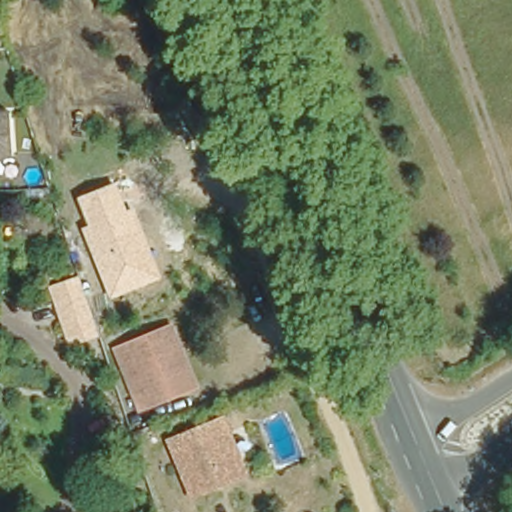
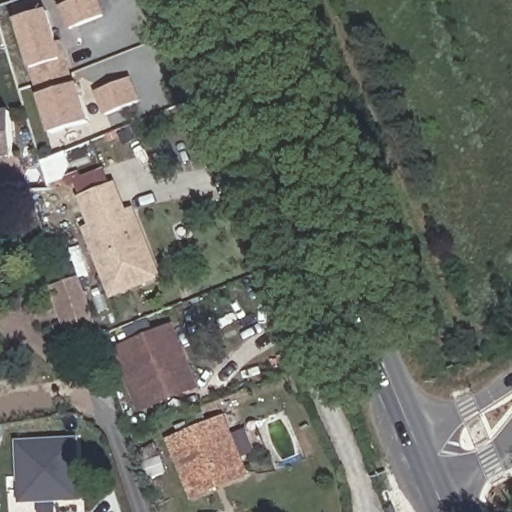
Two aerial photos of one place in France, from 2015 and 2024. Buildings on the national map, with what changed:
new [(90,121),(50,132),(38,96),(30,70),(16,20),(48,11),(63,59),(67,57),(75,84),(79,84),(90,121)]
unchanged [(11,110),(14,154),(0,155),(0,111),(11,110)]
unchanged [(111,297),(83,227),(89,225),(79,197),(117,182),(127,210),(134,207),(161,278),(111,297)]
unchanged [(99,337),(71,346),(50,286),(78,276),(99,337)]
unchanged [(119,347),(127,343),(171,326),(194,382),(151,400),(143,402),(119,347)]
unchanged [(192,492),(175,449),(170,435),(218,415),(224,430),(241,473),(192,492)]
new [(16,477),(15,443),(73,441),(75,498),(33,500),(17,501),(16,477)]

